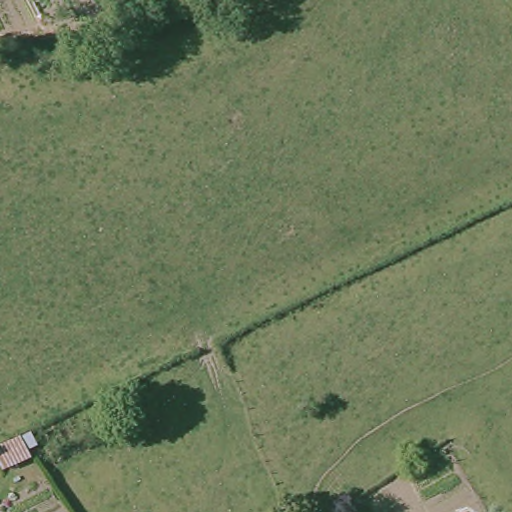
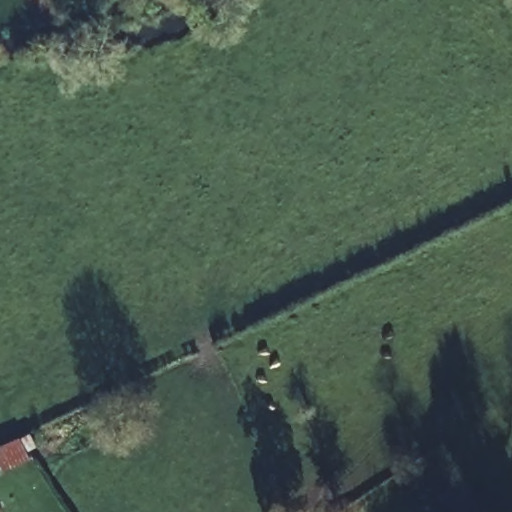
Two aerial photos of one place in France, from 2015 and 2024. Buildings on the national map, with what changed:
unchanged [(15,432),(23,452),(0,461),(0,439),(15,432)]

